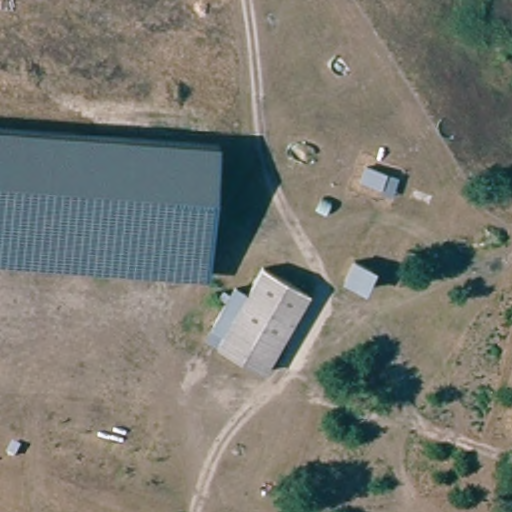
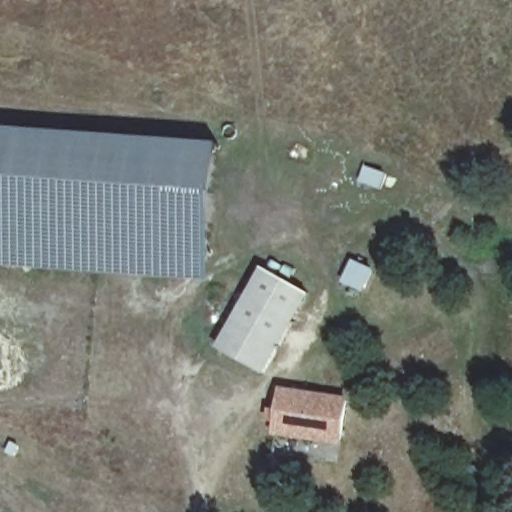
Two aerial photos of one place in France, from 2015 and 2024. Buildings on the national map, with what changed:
unchanged [(221,142),(209,281),(0,264),(0,127),(221,142)]
unchanged [(362,292),(339,281),(350,255),(375,266),(362,292)]
unchanged [(305,291),(262,370),(216,345),(224,332),(211,325),(222,304),(232,286),(236,287),(245,293),(260,266),(305,291)]
new [(348,397),(342,446),(273,436),(280,386),(348,397)]

